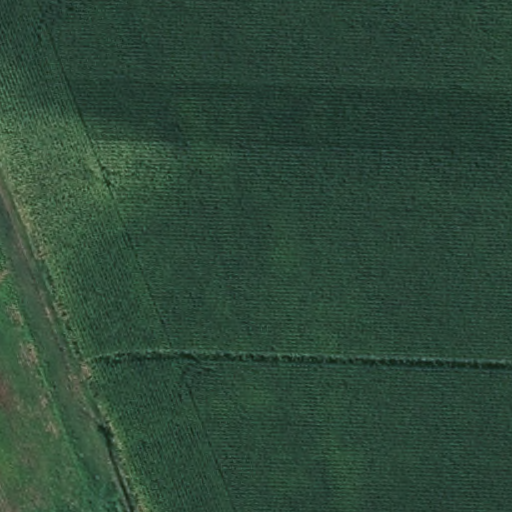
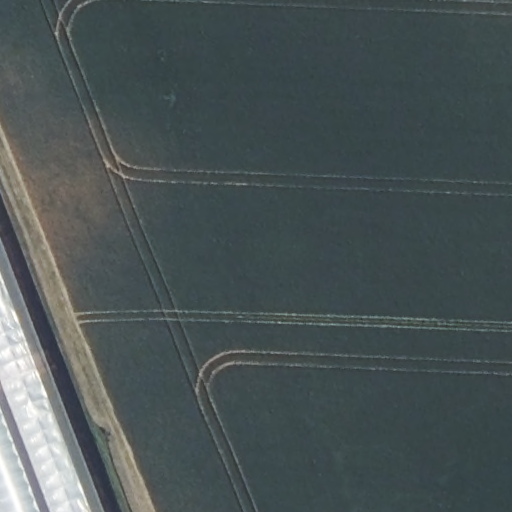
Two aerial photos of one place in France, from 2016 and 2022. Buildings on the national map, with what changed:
new [(104,512),(0,512),(0,234),(104,512)]

